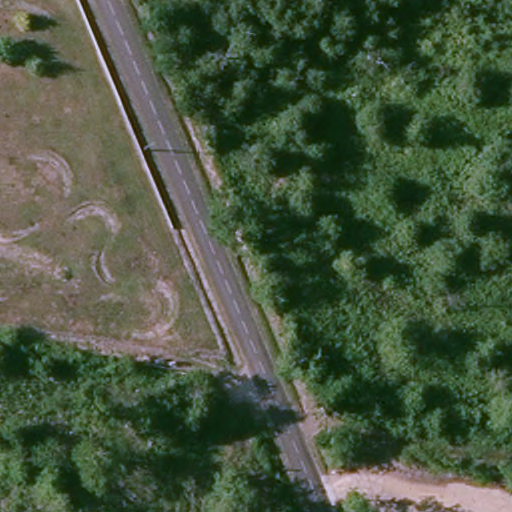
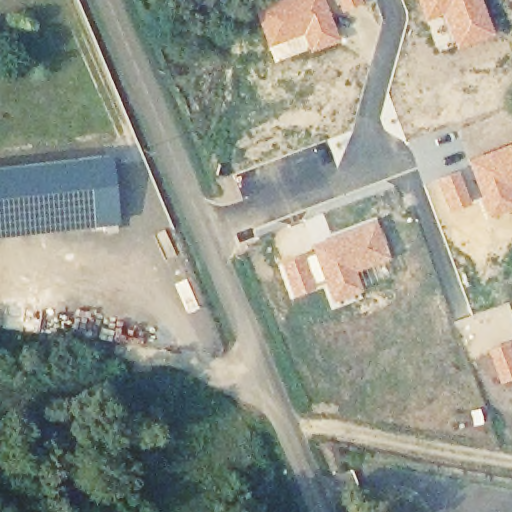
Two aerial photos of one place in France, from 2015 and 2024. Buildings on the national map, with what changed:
new [(334,32),(309,42),(302,23),(267,36),(254,2),(260,0),(322,0),(334,32)]
new [(489,34),(457,43),(444,9),(426,16),(420,0),(478,0),(489,34)]
new [(512,147),(512,183),(509,184),(512,193),(512,207),(489,215),(470,162),(512,147)]
new [(0,166),(109,153),(117,223),(0,236),(0,166)]
new [(279,263),(302,254),(303,257),(314,253),(311,245),(376,220),(389,257),(354,271),(361,289),(332,301),(323,279),(312,283),(314,287),(292,294),(279,263)]

